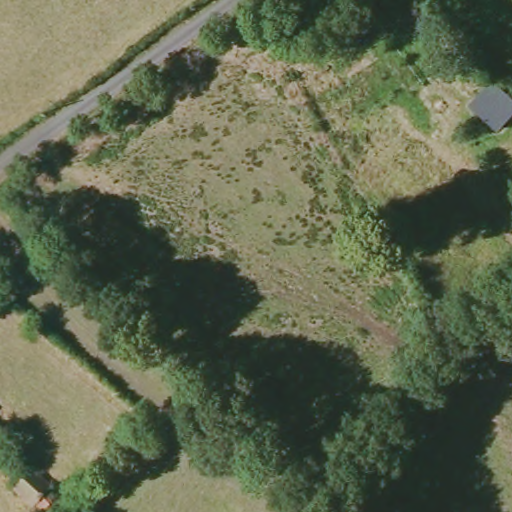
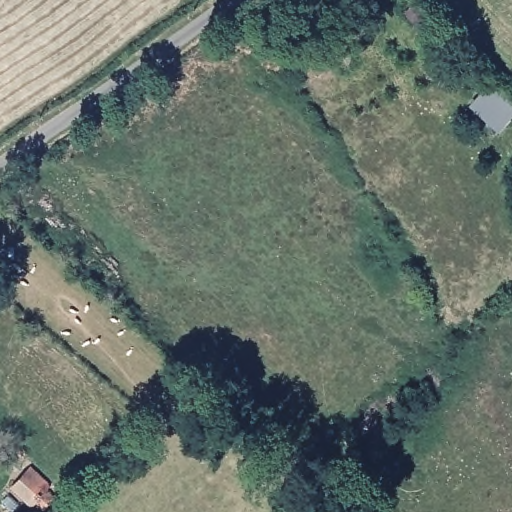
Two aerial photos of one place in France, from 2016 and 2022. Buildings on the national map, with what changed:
unchanged [(53,483),(49,487),(55,492),(43,504),(37,500),(32,504),(11,485),(27,469),(33,465),(53,483)]

